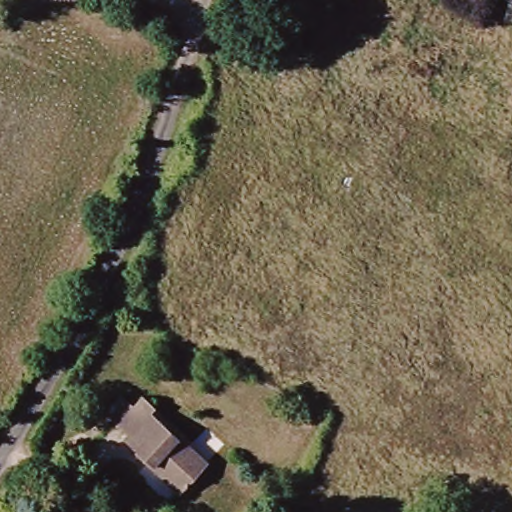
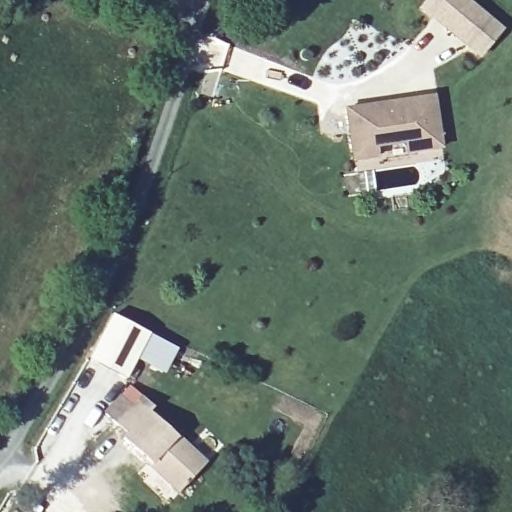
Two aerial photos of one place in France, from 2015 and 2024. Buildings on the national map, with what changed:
new [(470,0),(505,30),(482,57),(425,8),(432,0),(470,0)]
new [(401,101),(436,96),(442,148),(408,152),(407,142),(376,146),(377,156),(354,160),(347,108),(371,105),(401,101)]
new [(166,373),(137,360),(127,379),(88,359),(112,313),(151,333),(179,347),(166,373)]
unchanged [(206,461),(177,489),(125,435),(130,430),(115,412),(137,396),(151,384),(163,398),(153,407),(206,461)]

